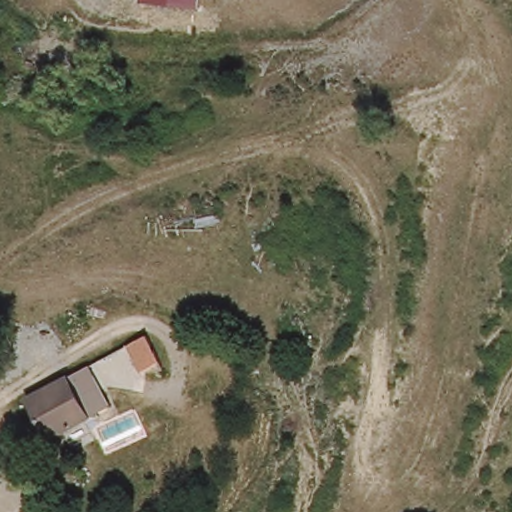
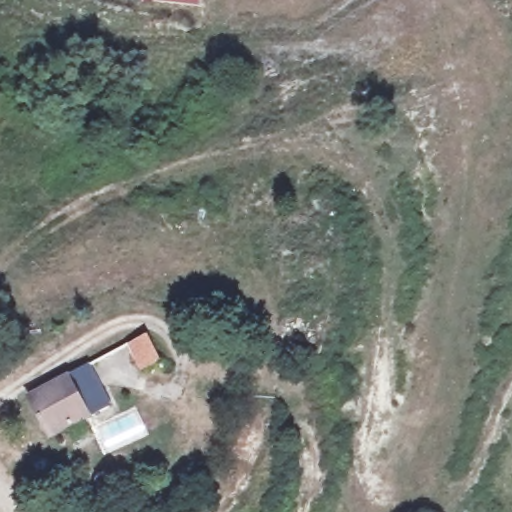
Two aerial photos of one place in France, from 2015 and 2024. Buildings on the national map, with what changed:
unchanged [(142,3),(142,0),(198,0),(198,7),(142,3)]
unchanged [(126,342),(145,332),(164,358),(142,368),(126,342)]
unchanged [(109,399),(49,435),(27,394),(85,359),(109,399)]

